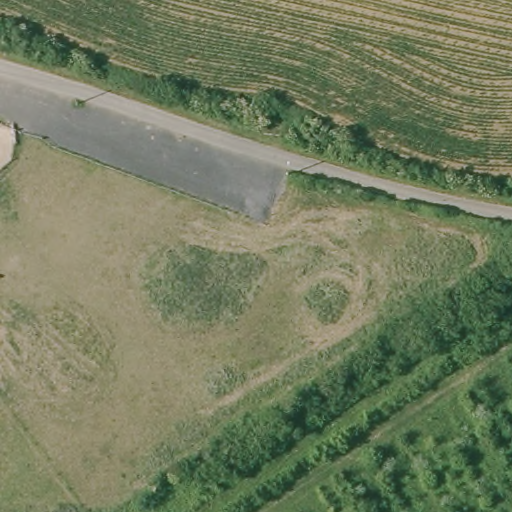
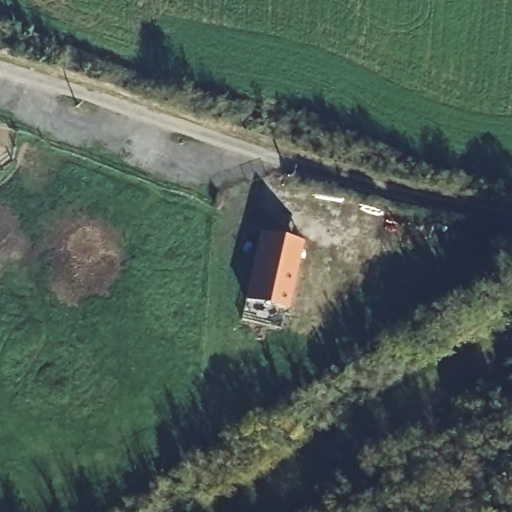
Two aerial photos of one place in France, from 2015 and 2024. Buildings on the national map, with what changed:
new [(303,241),(288,314),(247,305),(262,232),(303,241)]

